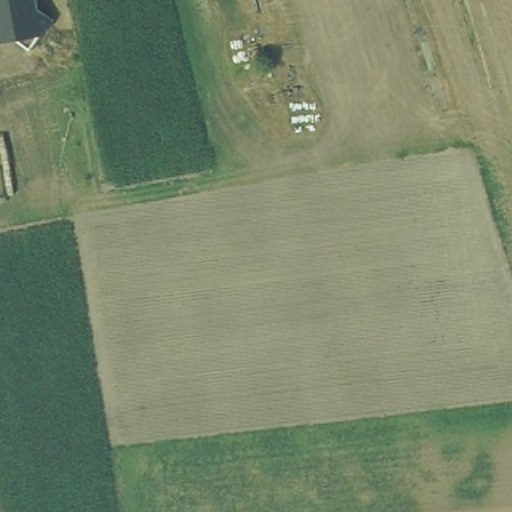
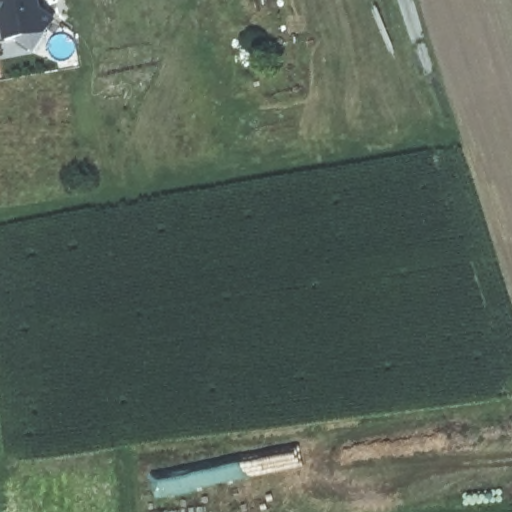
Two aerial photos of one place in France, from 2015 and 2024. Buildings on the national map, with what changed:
unchanged [(21,39),(4,43),(0,24),(0,0),(40,0),(42,8),(59,21),(35,51),(21,39)]

